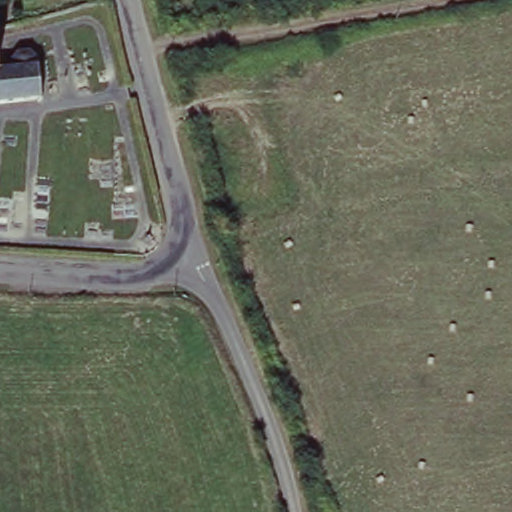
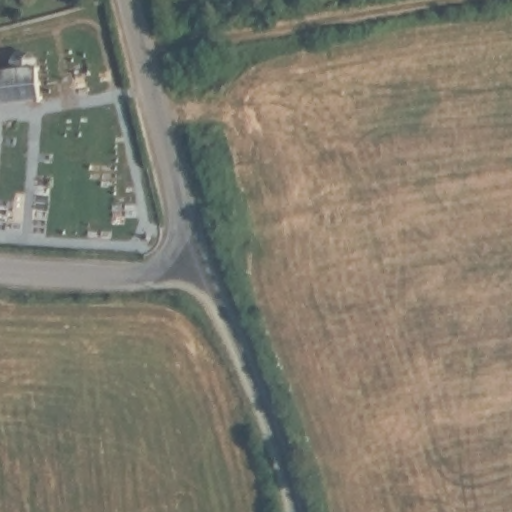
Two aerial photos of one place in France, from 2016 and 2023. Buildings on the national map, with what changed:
unchanged [(4,62),(4,53),(29,51),(37,99),(0,104),(0,62),(4,62)]

